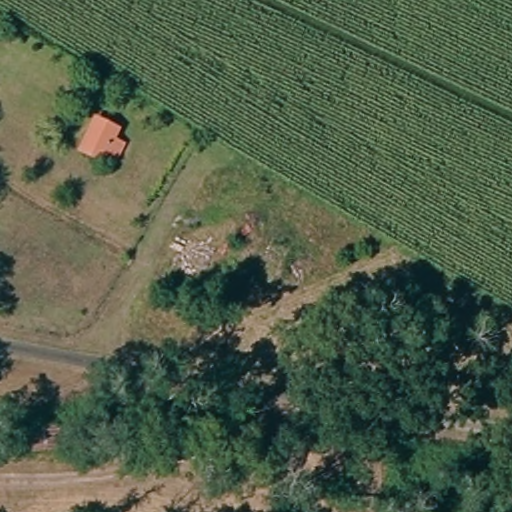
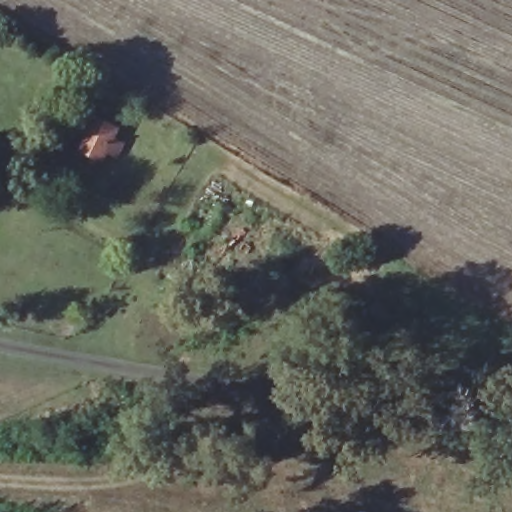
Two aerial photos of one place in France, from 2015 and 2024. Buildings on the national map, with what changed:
unchanged [(130,133),(120,152),(114,148),(107,161),(101,158),(97,166),(82,158),(102,119),(130,133)]

